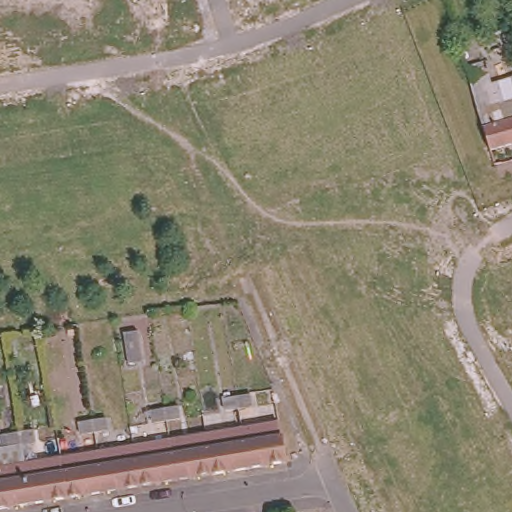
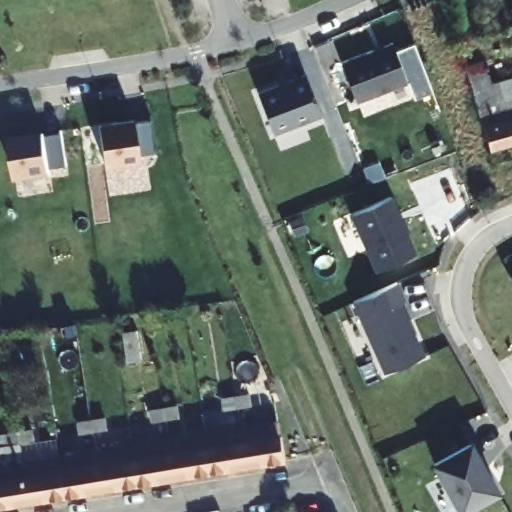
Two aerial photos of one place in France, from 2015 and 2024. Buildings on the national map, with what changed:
demolished [(503,34),(512,31),(512,44),(507,46),(503,34)]
new [(408,81),(357,101),(341,60),(393,41),(408,81)]
new [(433,92),(414,99),(408,81),(396,49),(415,43),(433,92)]
new [(304,73),(320,112),(273,131),(256,91),(276,84),(280,85),(288,82),(288,80),(304,73)]
unchanged [(512,76),(512,141),(486,149),(464,80),(485,74),(488,83),(512,76)]
new [(156,150),(139,155),(141,162),(105,166),(98,118),(133,114),(134,119),(151,117),(156,150)]
new [(67,164),(50,167),(51,173),(14,179),(8,132),(44,127),(45,132),(62,131),(67,164)]
new [(375,269),(352,214),(392,195),(417,251),(375,269)]
new [(385,371),(354,301),(398,281),(405,297),(401,300),(425,355),(385,371)]
unchanged [(137,330),(141,358),(127,361),(123,331),(137,330)]
unchanged [(238,395),(251,392),(253,404),(239,406),(226,408),(225,397),(238,395)]
unchanged [(153,408),(164,406),(178,404),(181,415),(166,418),(154,420),(153,408)]
unchanged [(92,418),(105,416),(107,427),(94,430),(81,431),(79,420),(92,418)]
unchanged [(277,421),(281,421),(287,458),(249,465),(243,427),(277,421)]
unchanged [(19,430),(33,427),(35,440),(21,442),(8,444),(6,432),(19,430)]
unchanged [(243,427),(249,465),(213,470),(207,432),(243,427)]
unchanged [(207,432),(213,470),(176,477),(170,438),(207,432)]
unchanged [(170,438),(176,477),(140,483),(133,445),(170,438)]
new [(461,512),(432,462),(470,439),(499,490),(463,512),(461,512)]
unchanged [(133,445),(140,483),(104,489),(98,450),(133,445)]
unchanged [(98,450),(104,489),(68,495),(61,456),(98,450)]
unchanged [(61,456),(68,495),(31,501),(24,462),(61,456)]
unchanged [(24,462),(31,501),(0,507),(0,467),(24,462)]

